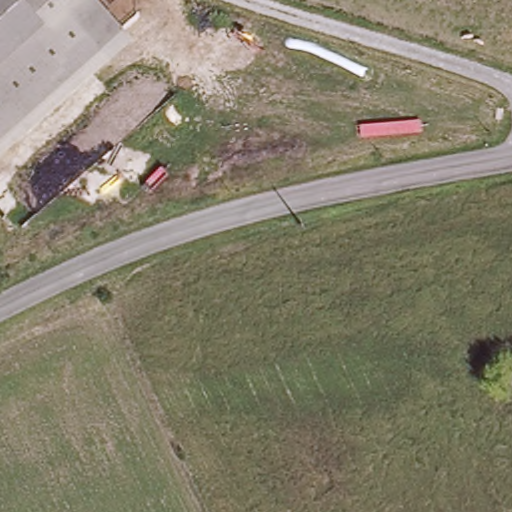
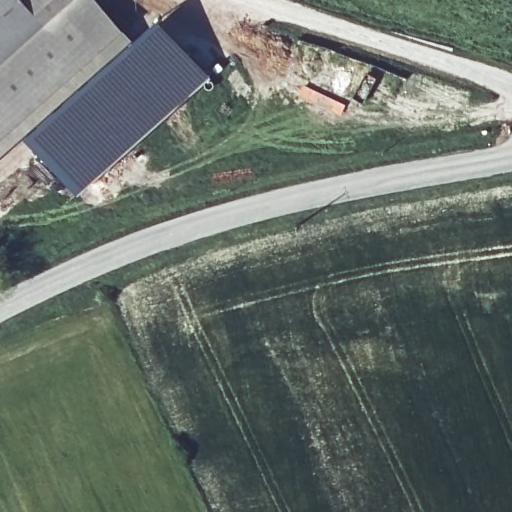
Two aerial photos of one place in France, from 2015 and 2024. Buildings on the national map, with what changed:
unchanged [(0,0),(98,0),(122,27),(99,47),(0,132),(0,0)]
new [(0,132),(122,27),(135,43),(164,17),(211,75),(77,193),(24,131),(0,150),(0,132)]

